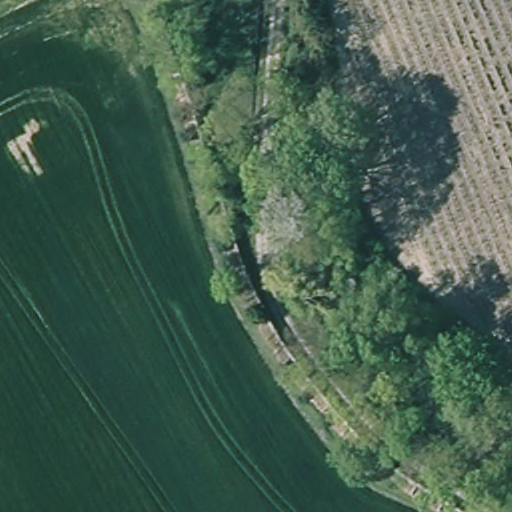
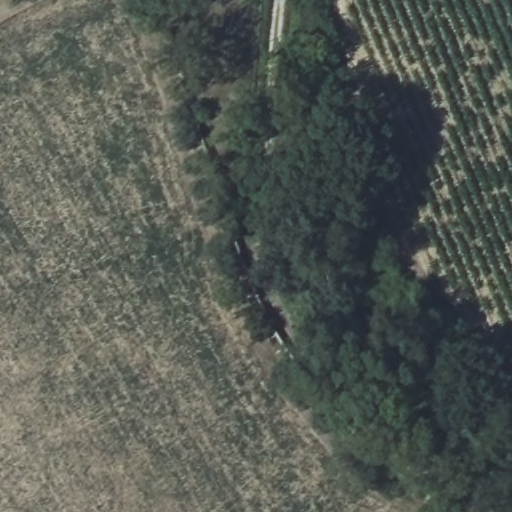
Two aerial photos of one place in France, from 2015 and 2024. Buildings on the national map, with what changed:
[]

